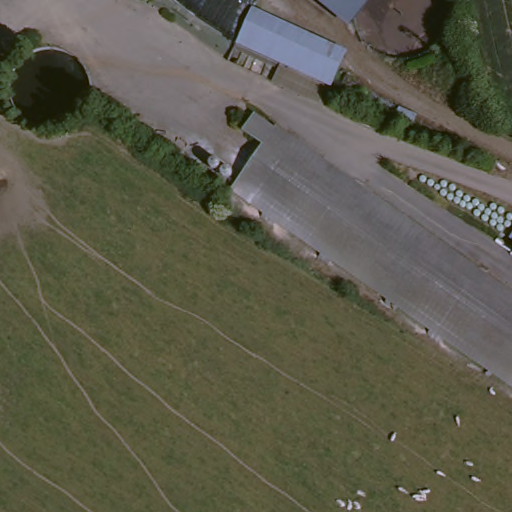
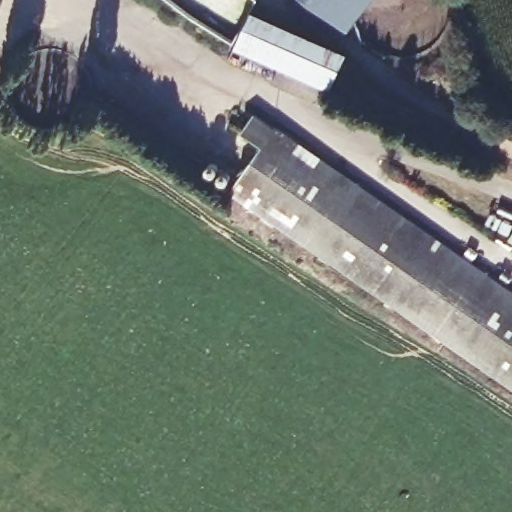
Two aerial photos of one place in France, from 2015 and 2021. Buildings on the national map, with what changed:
unchanged [(348,28),(313,0),(371,0),(348,28)]
unchanged [(352,52),(342,77),(340,82),(269,54),(266,53),(262,51),(244,43),(245,42),(256,13),(352,52)]
unchanged [(231,177),(268,126),(250,111),(262,94),(281,109),(512,285),(512,394),(231,177)]

